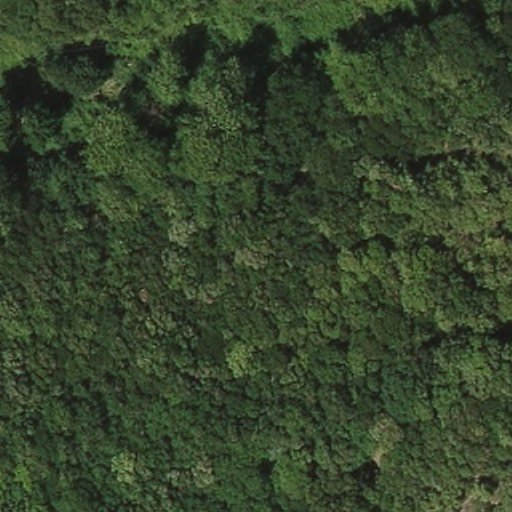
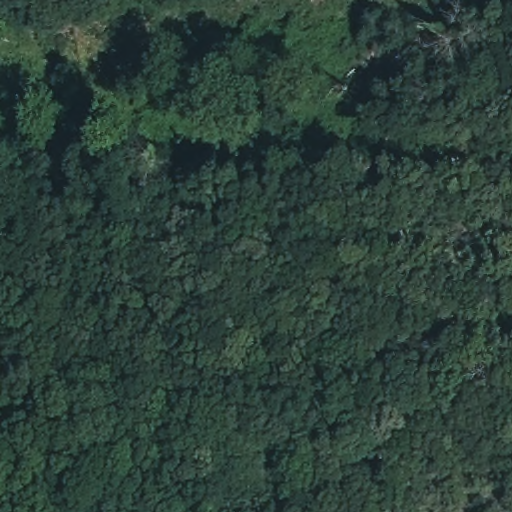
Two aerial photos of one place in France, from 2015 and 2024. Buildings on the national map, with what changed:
[]

